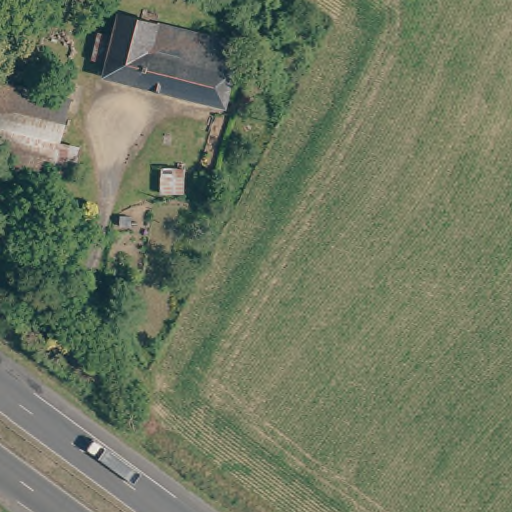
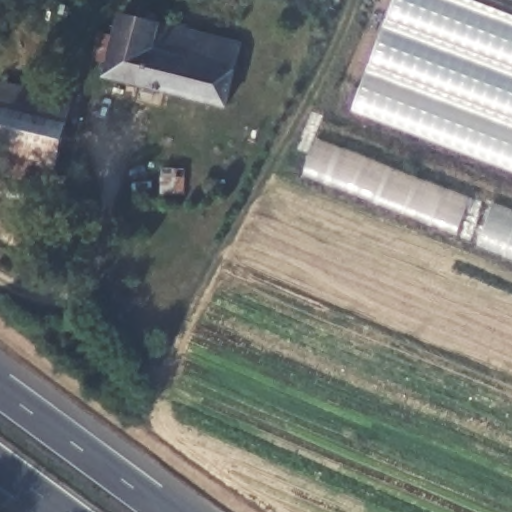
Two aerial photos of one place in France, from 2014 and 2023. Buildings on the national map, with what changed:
new [(468,0),(512,17),(512,173),(351,112),(394,0),(468,0)]
unchanged [(114,58),(94,54),(100,28),(120,31),(125,17),(127,13),(208,33),(245,44),(228,101),(111,71),(114,58)]
unchanged [(63,121),(0,104),(0,77),(70,94),(63,121)]
unchanged [(9,152),(0,150),(0,104),(63,121),(59,139),(79,144),(71,167),(65,166),(51,163),(48,182),(4,171),(9,152)]
unchanged [(174,206),(148,203),(151,186),(163,187),(164,176),(179,181),(174,206)]
unchanged [(198,203),(194,198),(195,191),(200,187),(207,188),(210,192),(212,197),(209,202),(204,205),(198,203)]
new [(492,208),(512,215),(512,258),(477,245),(492,208)]

